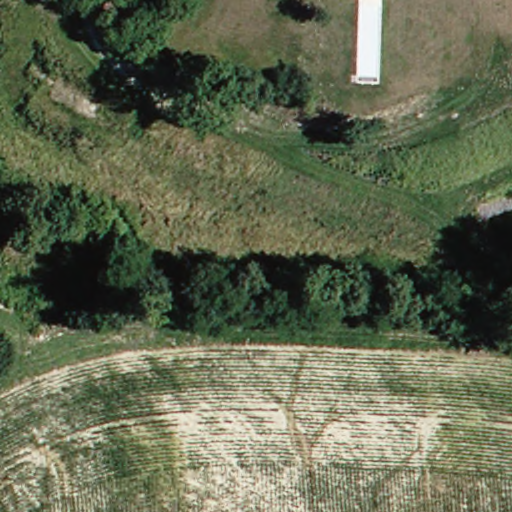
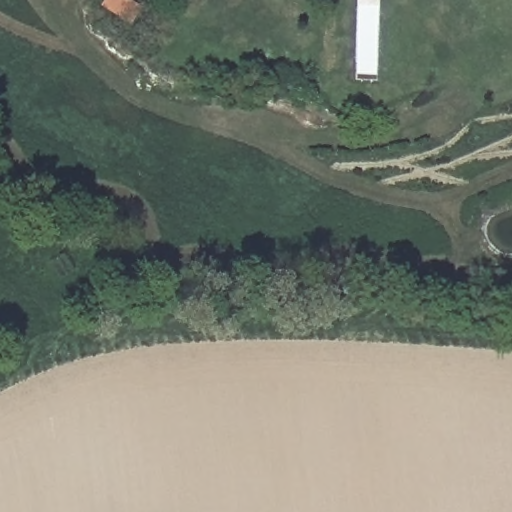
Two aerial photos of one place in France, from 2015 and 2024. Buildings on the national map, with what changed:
unchanged [(140,21),(113,3),(115,0),(140,0),(149,5),(140,21)]

